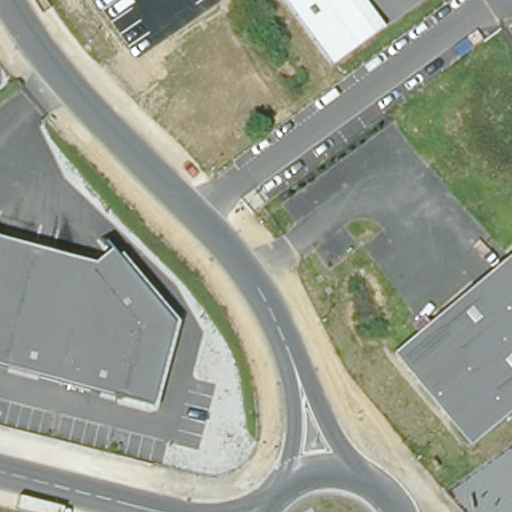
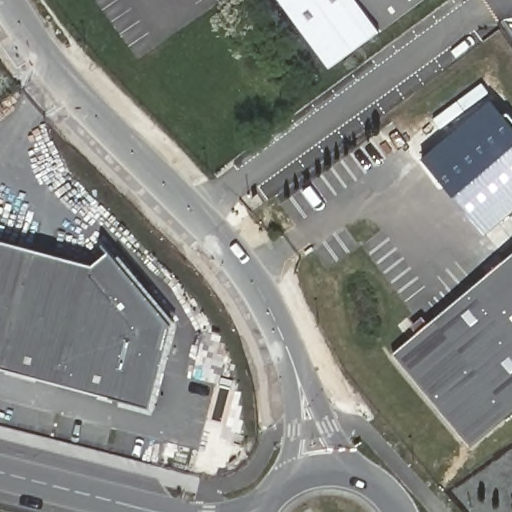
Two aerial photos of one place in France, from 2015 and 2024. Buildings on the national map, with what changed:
unchanged [(281,0),(411,0),(326,60),(281,0)]
new [(491,99),(512,124),(512,212),(487,234),(422,157),(491,99)]
unchanged [(92,260),(114,254),(172,317),(151,400),(0,362),(0,237),(92,260)]
unchanged [(512,411),(473,444),(393,351),(512,250),(512,411)]

